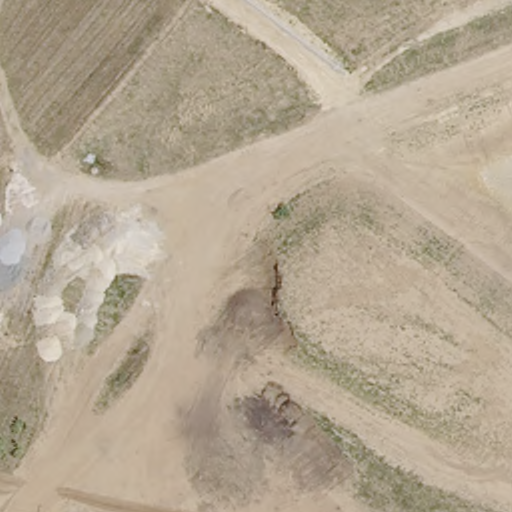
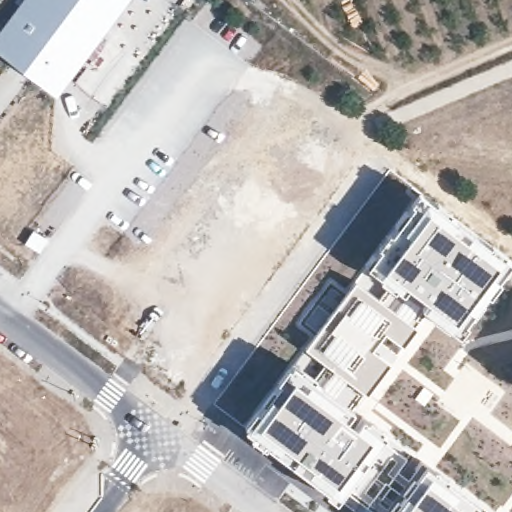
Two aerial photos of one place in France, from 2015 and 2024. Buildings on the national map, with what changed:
new [(56,97),(0,54),(0,28),(21,0),(130,0),(56,97)]
new [(493,512),(354,512),(333,497),(313,480),(261,442),(241,425),(266,391),(293,359),(302,348),(327,314),(359,272),(383,234),(418,191),(511,260),(457,331),(428,309),(402,351),(367,396),(358,409),(378,423),(408,450),(483,503),(493,512)]

